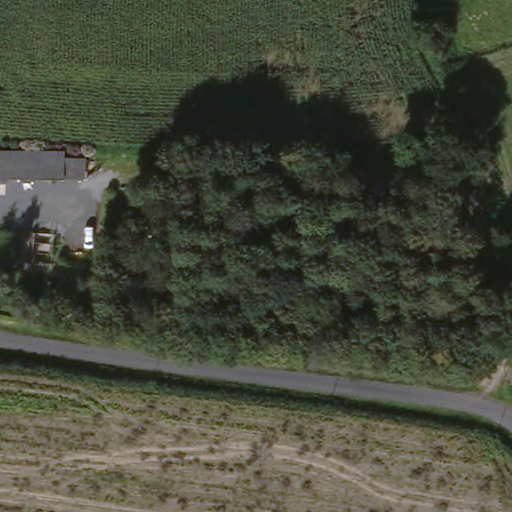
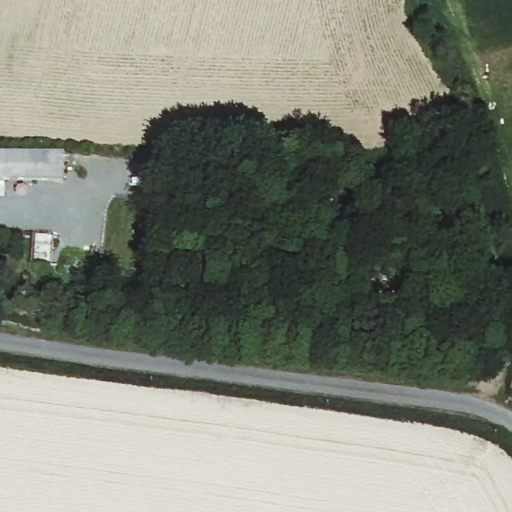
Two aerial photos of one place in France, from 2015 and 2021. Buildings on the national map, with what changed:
unchanged [(62,177),(22,178),(7,179),(7,185),(0,185),(0,153),(62,150),(62,177)]

